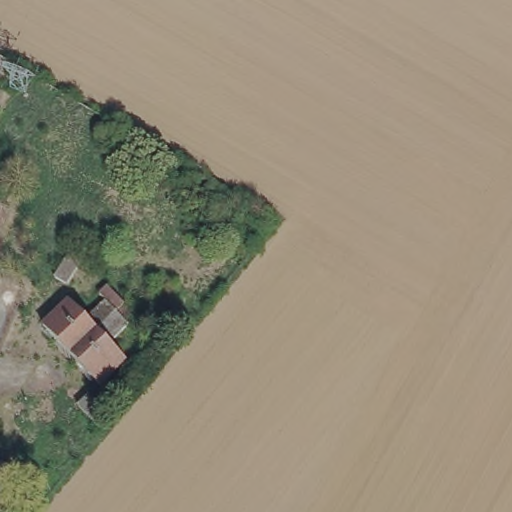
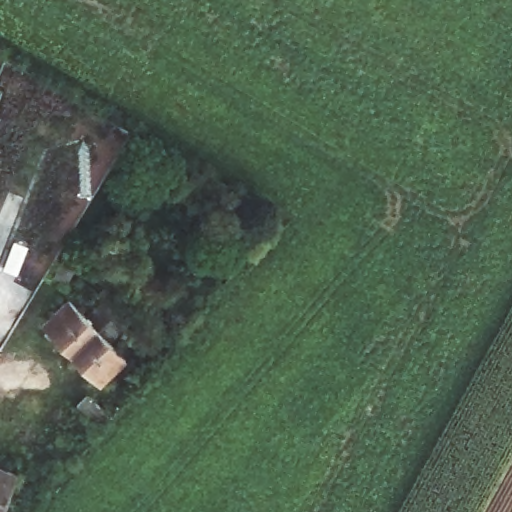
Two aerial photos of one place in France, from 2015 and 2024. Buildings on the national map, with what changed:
unchanged [(230,237),(210,218),(202,211),(213,202),(220,208),(241,227),(230,237)]
unchanged [(72,261),(55,284),(45,278),(60,254),(72,261)]
unchanged [(65,297),(82,312),(99,295),(115,310),(75,349),(44,319),(65,297)]
unchanged [(127,323),(112,337),(125,353),(101,376),(75,349),(115,310),(127,323)]
unchanged [(77,406),(87,397),(108,419),(97,431),(77,406)]
unchanged [(0,499),(0,465),(12,469),(0,499)]

